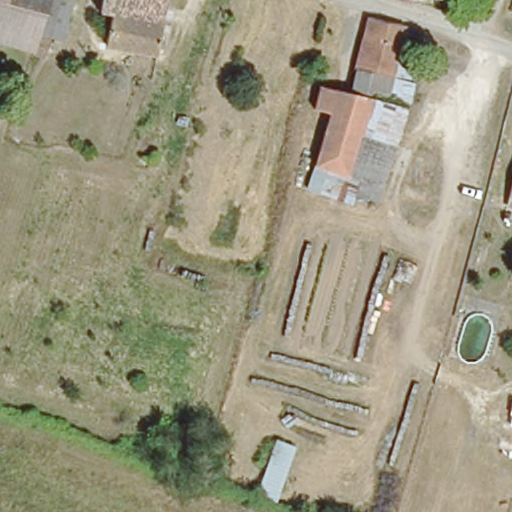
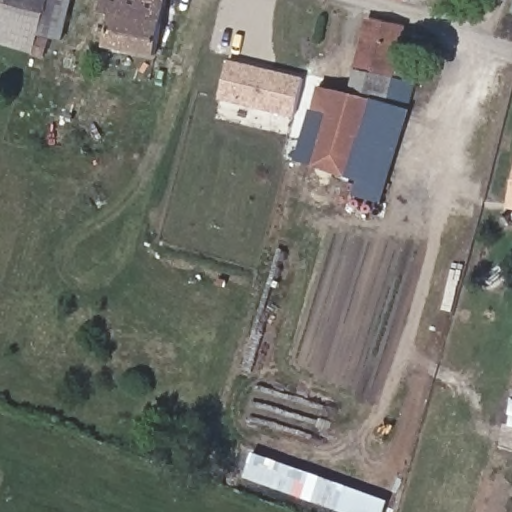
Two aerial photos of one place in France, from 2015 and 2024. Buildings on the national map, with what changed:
unchanged [(70,35),(61,33),(56,51),(46,48),(46,46),(1,33),(0,36),(0,0),(80,0),(70,35)]
unchanged [(103,50),(110,21),(96,18),(101,0),(165,0),(155,62),(103,50)]
unchanged [(405,41),(418,43),(415,80),(376,201),(342,197),(335,206),(303,193),(316,165),(305,164),(321,118),(310,113),(319,81),(349,84),(365,19),(406,25),(405,41)]
new [(220,99),(229,59),(297,75),(296,79),(303,81),(294,117),(220,99)]
unchanged [(148,160),(151,148),(162,150),(159,163),(148,160)]
new [(384,512),(343,512),(244,476),(254,452),(388,500),(384,512)]

